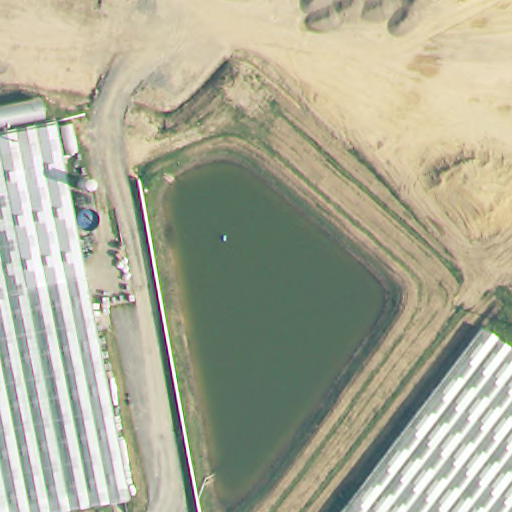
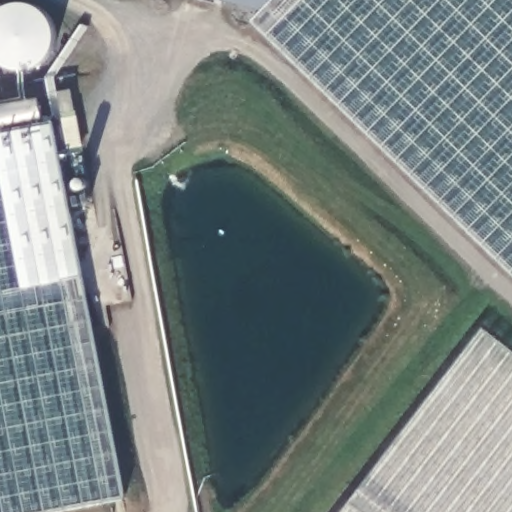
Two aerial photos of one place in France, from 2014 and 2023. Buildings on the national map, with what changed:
new [(275,0),(265,10),(223,0),(275,0)]
new [(265,10),(275,0),(512,0),(512,272),(253,21),(265,10)]
unchanged [(27,512),(0,512),(0,125),(43,116),(71,243),(124,491),(116,493),(27,512)]
unchanged [(478,324),(512,350),(512,512),(338,512),(478,324)]

